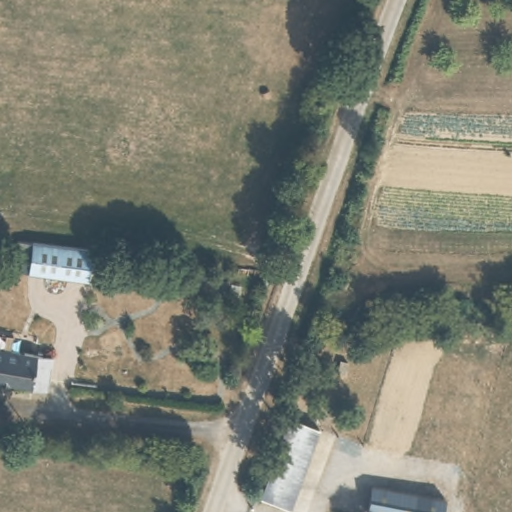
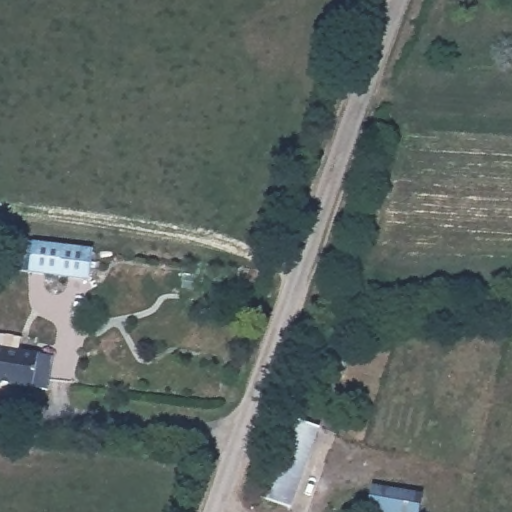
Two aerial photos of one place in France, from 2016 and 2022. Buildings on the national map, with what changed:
unchanged [(88,285),(28,277),(31,249),(90,256),(88,285)]
unchanged [(0,395),(0,357),(54,363),(51,401),(0,395)]
unchanged [(288,501),(260,493),(291,410),(318,421),(288,501)]
unchanged [(422,496),(419,512),(364,512),(369,487),(422,496)]

